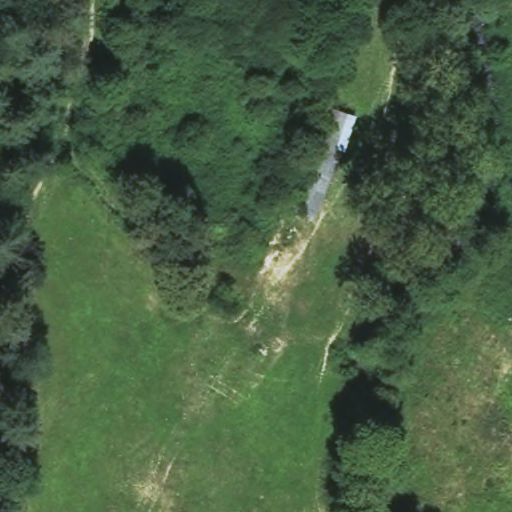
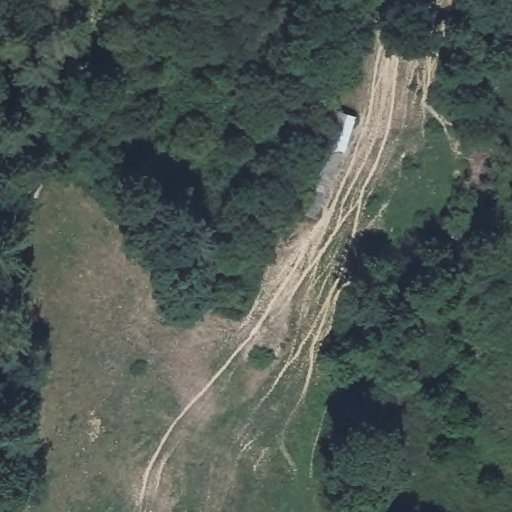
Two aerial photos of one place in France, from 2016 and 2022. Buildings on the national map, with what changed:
unchanged [(288,211),(321,109),(353,119),(313,220),(288,211)]

